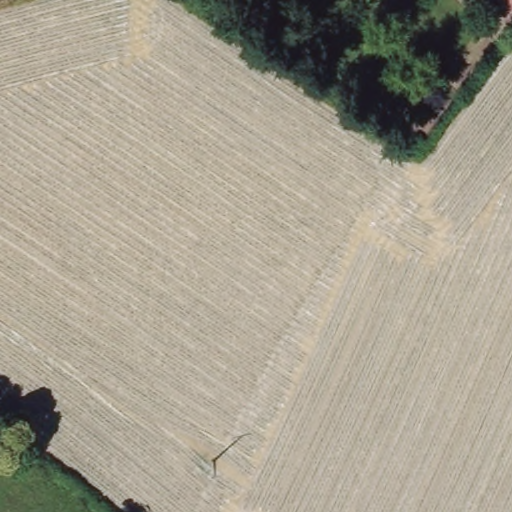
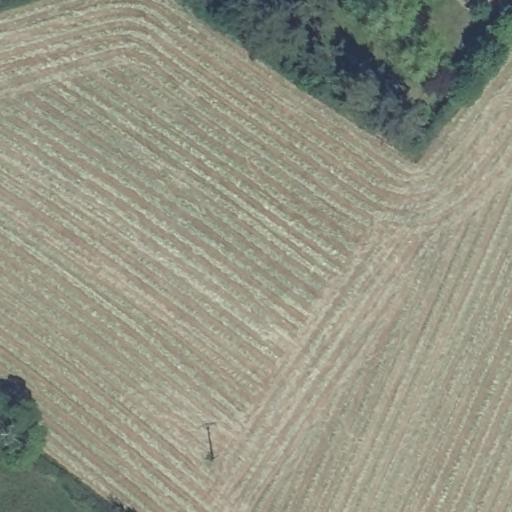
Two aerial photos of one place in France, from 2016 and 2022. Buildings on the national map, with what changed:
unchanged [(498,0),(512,0),(512,6),(503,12),(498,0)]
unchanged [(505,30),(512,23),(512,35),(505,30)]

